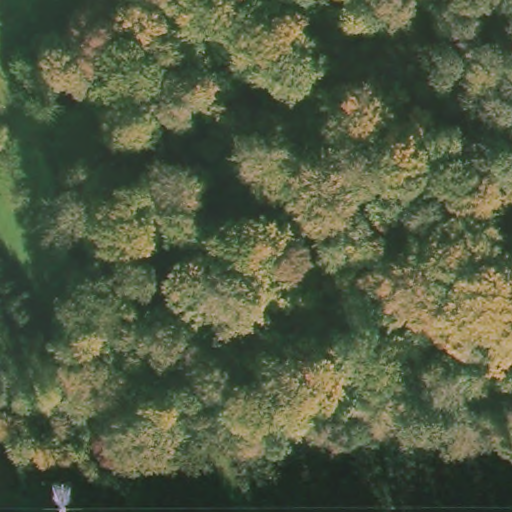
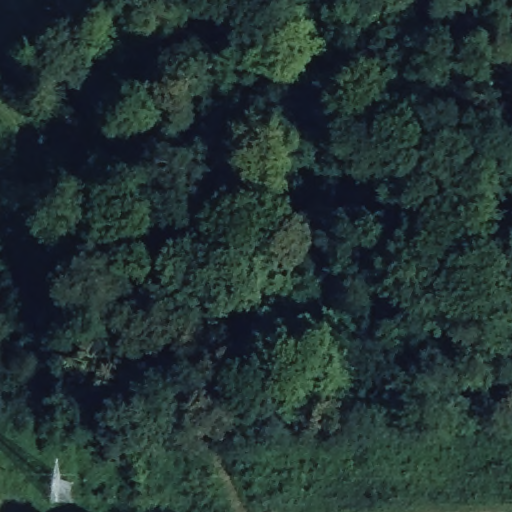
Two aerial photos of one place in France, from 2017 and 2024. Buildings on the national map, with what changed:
unchanged [(87,48),(86,36),(99,35),(103,45),(87,48)]

